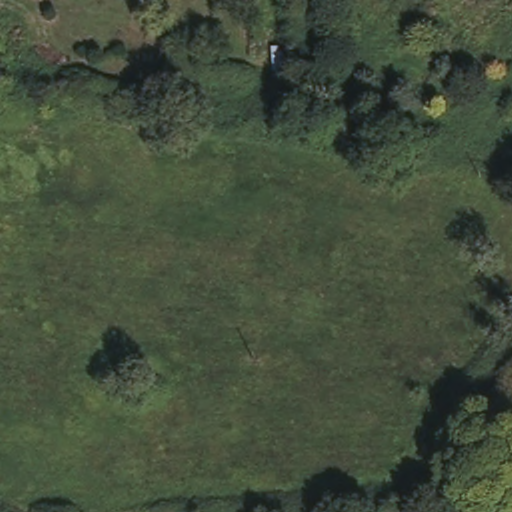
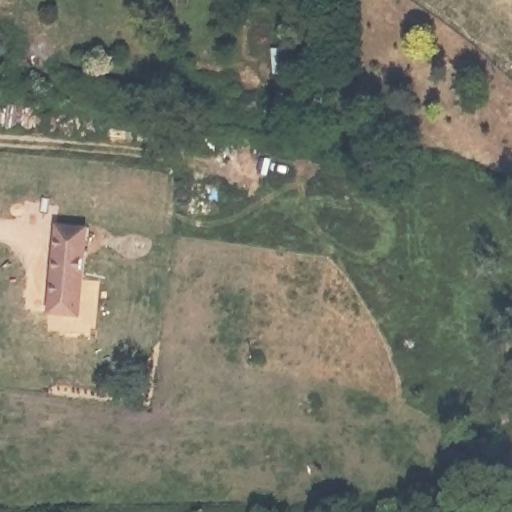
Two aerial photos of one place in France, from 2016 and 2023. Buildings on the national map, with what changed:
new [(86,230),(79,322),(46,319),(53,227),(86,230)]

